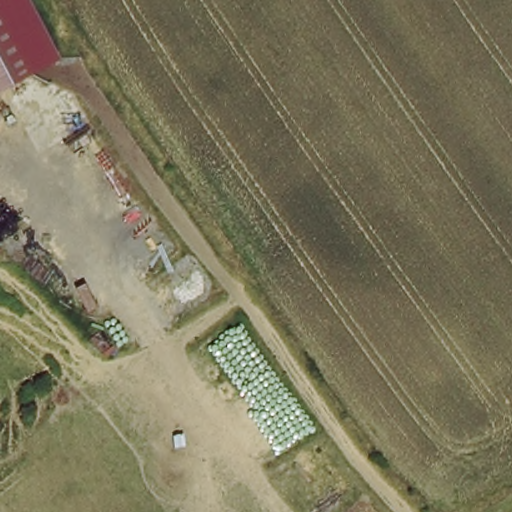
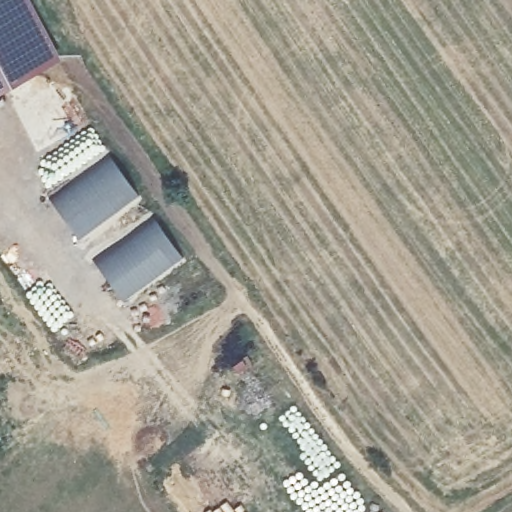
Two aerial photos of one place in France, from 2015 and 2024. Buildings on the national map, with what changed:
unchanged [(48,38),(53,47),(0,82),(0,0),(22,0),(48,38)]
new [(79,240),(50,199),(112,156),(142,197),(79,240)]
new [(155,218),(184,258),(123,301),(93,260),(155,218)]

